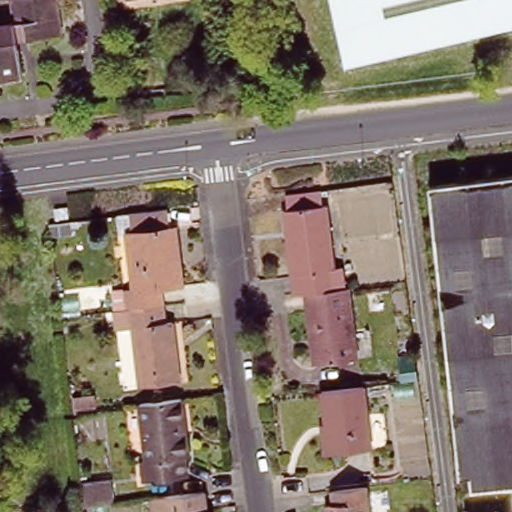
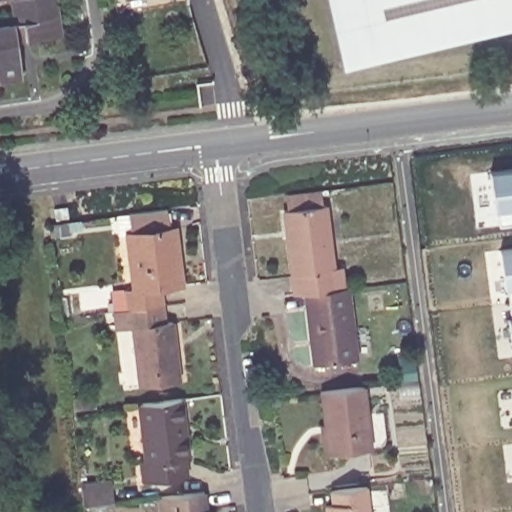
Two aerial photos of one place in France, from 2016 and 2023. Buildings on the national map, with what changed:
unchanged [(17,34),(21,72),(0,75),(0,21),(14,19),(11,0),(56,0),(60,29),(17,34)]
unchanged [(347,64),(332,0),(512,0),(512,25),(347,64)]
demolished [(431,201),(512,191),(512,484),(462,489),(431,201)]
unchanged [(337,271),(344,270),(347,292),(306,297),(297,298),(286,215),(289,214),(287,198),(322,194),(324,210),(329,209),(337,271)]
unchanged [(157,309),(125,313),(122,293),(130,292),(123,239),(125,239),(122,217),(128,217),(160,213),(163,234),(165,234),(170,233),(175,269),(177,289),(155,293),(157,309)]
unchanged [(315,369),(306,297),(347,292),(352,290),(361,363),(315,369)]
unchanged [(167,327),(175,385),(137,390),(129,332),(122,333),(114,334),(111,314),(119,314),(125,313),(157,309),(160,328),(167,327)]
unchanged [(320,424),(327,424),(322,391),(365,385),(373,448),(330,453),(325,454),(320,424)]
unchanged [(147,481),(144,458),(150,458),(142,402),(184,397),(192,454),(188,455),(191,476),(147,481)]
unchanged [(84,489),(83,482),(114,478),(115,485),(117,501),(86,505),(84,489)]
unchanged [(332,506),(338,504),(336,490),(372,486),(375,512),(332,512),(332,506)]
unchanged [(152,497),(205,491),(208,512),(154,512),(152,497)]

